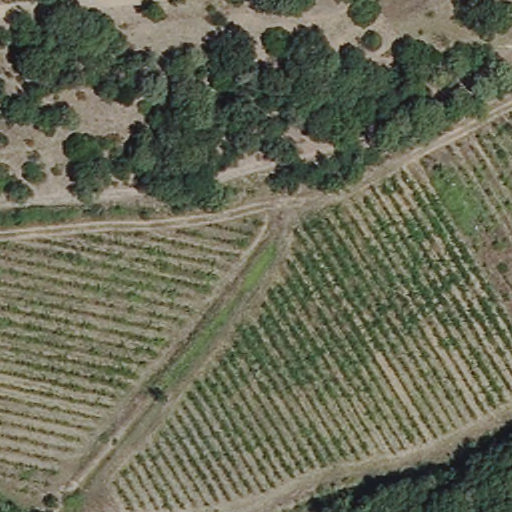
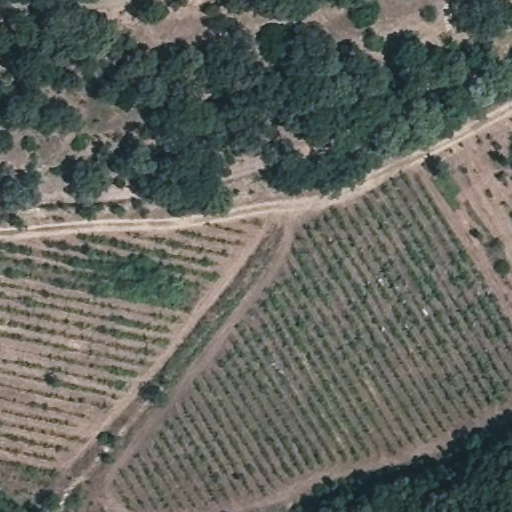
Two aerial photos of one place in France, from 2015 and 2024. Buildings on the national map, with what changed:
[]

